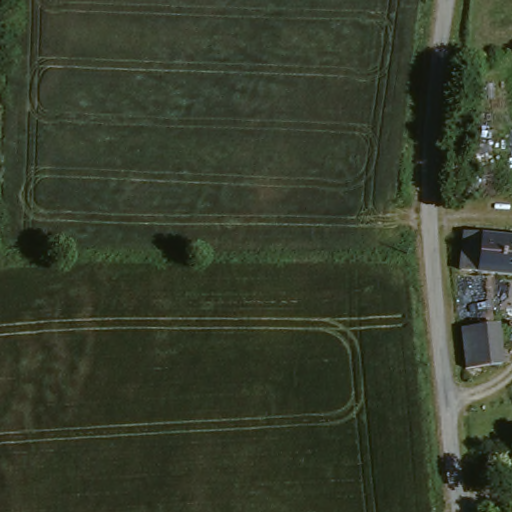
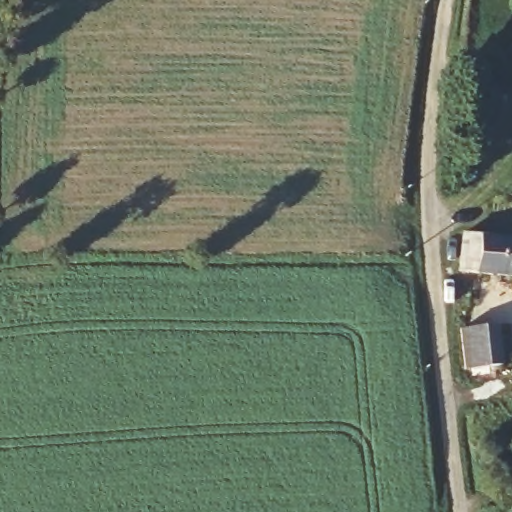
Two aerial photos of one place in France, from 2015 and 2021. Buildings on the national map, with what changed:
unchanged [(469,237),(512,239),(512,273),(467,271),(469,237)]
unchanged [(465,325),(504,320),(510,359),(470,364),(465,325)]

